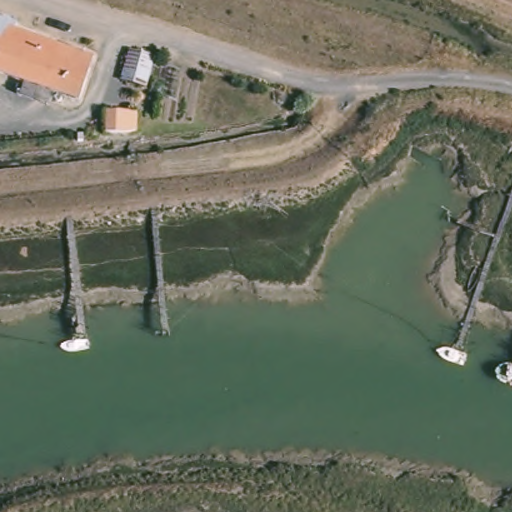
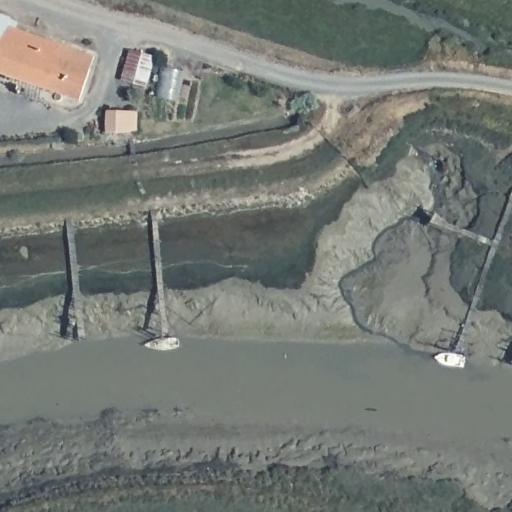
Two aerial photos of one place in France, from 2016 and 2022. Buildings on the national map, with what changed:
unchanged [(16,29),(97,55),(80,103),(0,77),(0,17),(19,24),(16,29)]
unchanged [(121,80),(129,49),(155,54),(148,86),(121,80)]
unchanged [(104,132),(104,111),(137,111),(137,130),(104,132)]

